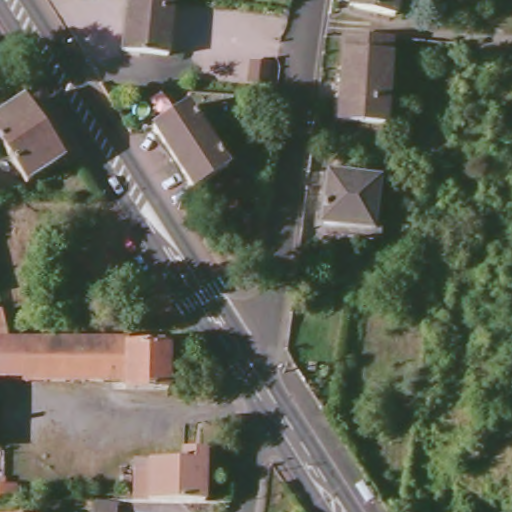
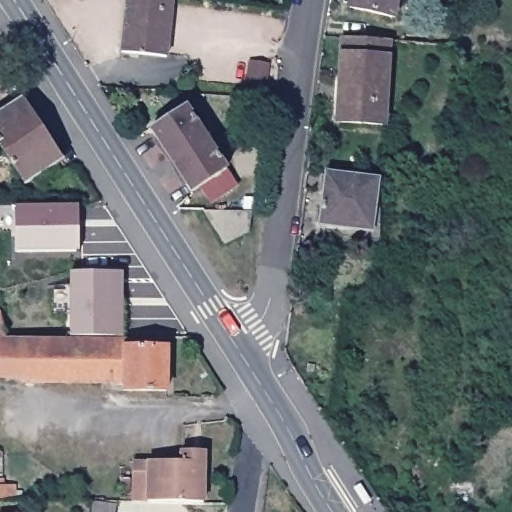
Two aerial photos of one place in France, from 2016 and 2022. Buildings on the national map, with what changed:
unchanged [(167,58),(121,53),(123,35),(127,36),(131,7),(126,7),(127,0),(174,0),(167,58)]
unchanged [(395,15),(350,6),(351,0),(398,0),(395,15)]
unchanged [(487,7),(475,6),(475,0),(488,0),(487,7)]
unchanged [(386,46),(380,131),(334,127),(340,42),(386,46)]
unchanged [(248,82),(250,59),(270,60),(269,83),(248,82)]
unchanged [(65,161),(28,184),(0,142),(0,115),(24,99),(65,161)]
unchanged [(230,171),(196,193),(152,130),(187,107),(230,171)]
unchanged [(380,178),(373,229),(322,223),(328,172),(380,178)]
new [(80,251),(14,252),(15,232),(0,232),(0,207),(16,206),(80,206),(80,251)]
unchanged [(256,212),(253,232),(227,244),(206,210),(256,212)]
new [(125,343),(81,342),(71,342),(70,273),(122,273),(125,338),(125,343)]
unchanged [(81,342),(125,343),(125,338),(167,339),(167,391),(126,390),(125,383),(24,381),(24,370),(10,370),(7,370),(6,362),(0,362),(0,342),(9,342),(81,342)]
unchanged [(133,464),(151,464),(182,464),(183,453),(205,453),(204,503),(152,502),(132,502),(133,464)]
unchanged [(476,475),(473,491),(453,489),(456,472),(476,475)]

